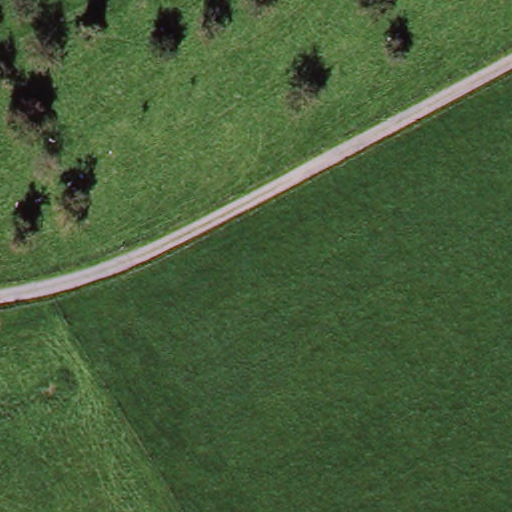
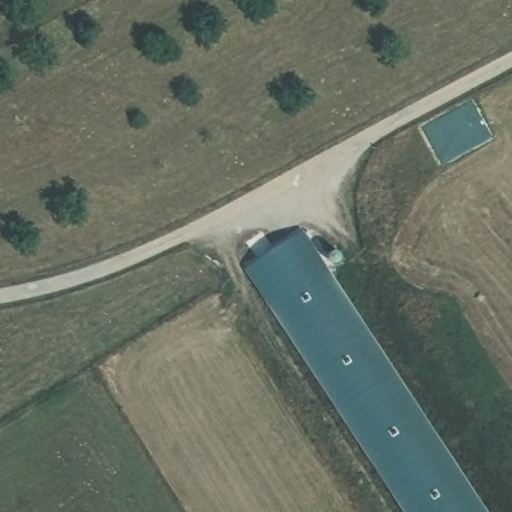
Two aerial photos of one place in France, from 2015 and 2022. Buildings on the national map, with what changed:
new [(407,512),(248,269),(301,231),(489,512),(407,512)]

